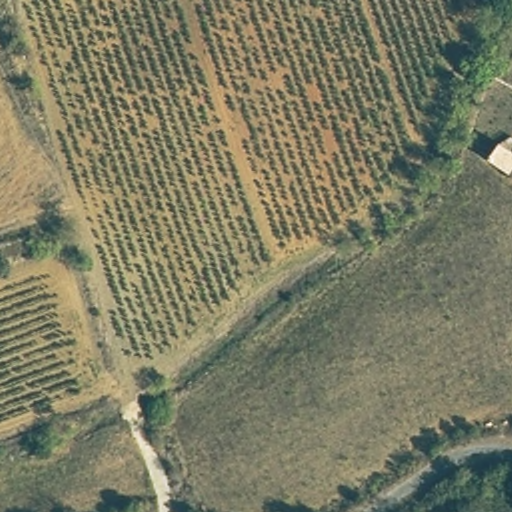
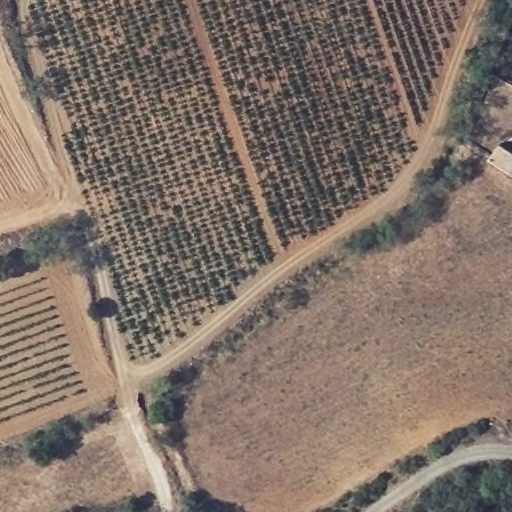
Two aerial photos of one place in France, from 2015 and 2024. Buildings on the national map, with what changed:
unchanged [(497,139),(512,150),(512,168),(509,172),(485,155),(497,139)]

